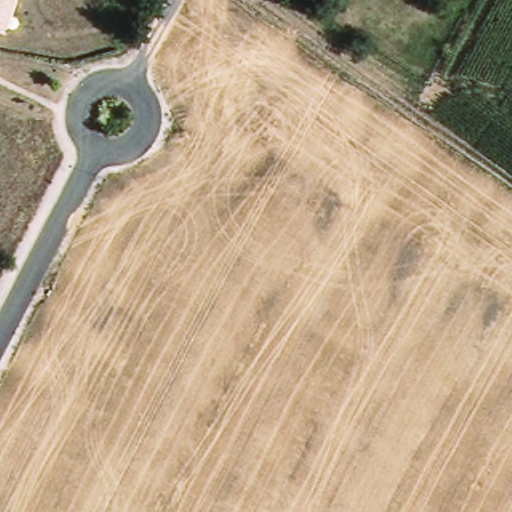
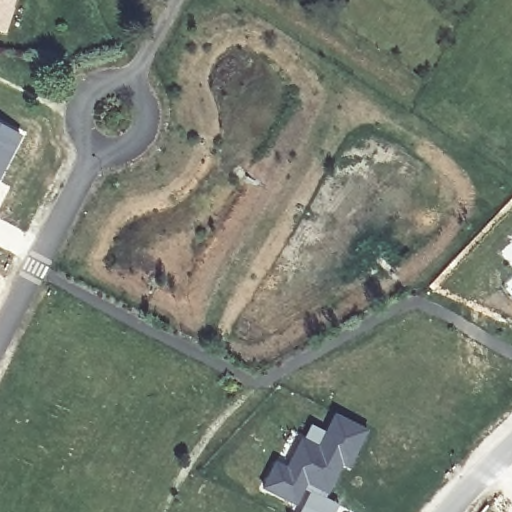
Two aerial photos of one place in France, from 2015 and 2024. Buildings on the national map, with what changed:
unchanged [(2,33),(0,32),(0,0),(13,0),(2,33)]
new [(22,134),(0,176),(0,122),(22,134)]
new [(275,458),(285,463),(310,422),(325,430),(334,411),(370,428),(349,469),(342,466),(326,496),(307,486),(298,503),(260,486),(275,458)]
new [(298,503),(307,486),(326,496),(338,503),(334,512),(297,512),(300,505),(298,503)]

